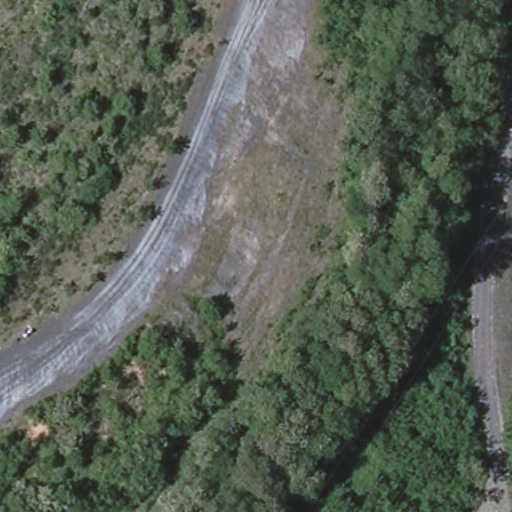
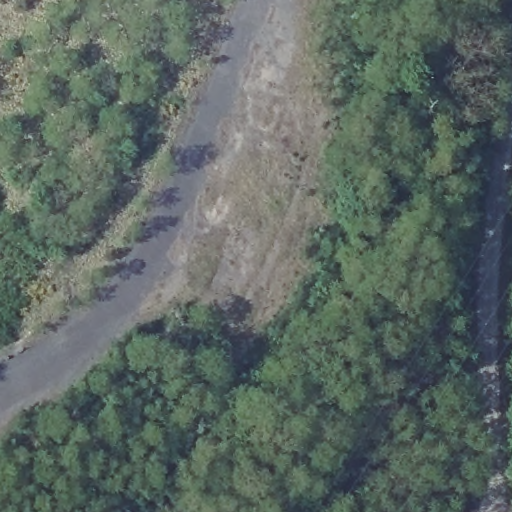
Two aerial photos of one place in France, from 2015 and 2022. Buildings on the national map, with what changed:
[]

